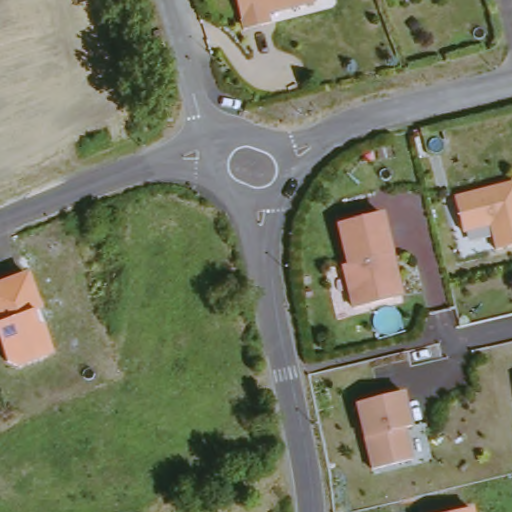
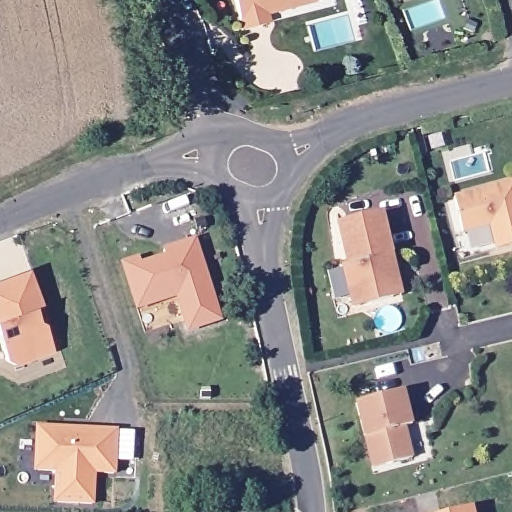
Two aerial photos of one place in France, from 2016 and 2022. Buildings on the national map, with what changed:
unchanged [(271,12),(273,22),(247,28),(239,0),(314,0),(271,12)]
unchanged [(446,152),(429,157),(423,137),(441,133),(446,152)]
unchanged [(503,250),(497,226),(468,233),(460,198),(512,186),(512,248),(503,250)]
unchanged [(397,297),(358,308),(347,265),(352,264),(341,224),(383,211),(394,252),(404,294),(397,297)]
new [(223,321),(188,333),(177,298),(137,310),(122,263),(140,257),(141,263),(166,256),(164,250),(196,239),(223,321)]
unchanged [(29,273),(43,311),(39,312),(54,354),(17,367),(8,364),(0,346),(0,283),(29,273)]
unchanged [(362,407),(408,394),(418,428),(429,425),(436,456),(381,474),(362,407)]
new [(117,475),(96,474),(96,505),(55,503),(56,471),(34,470),(37,426),(119,429),(117,475)]
unchanged [(477,512),(473,512),(477,511),(477,512)]

